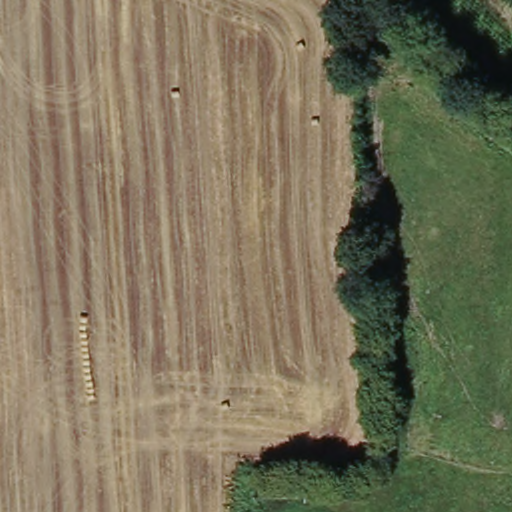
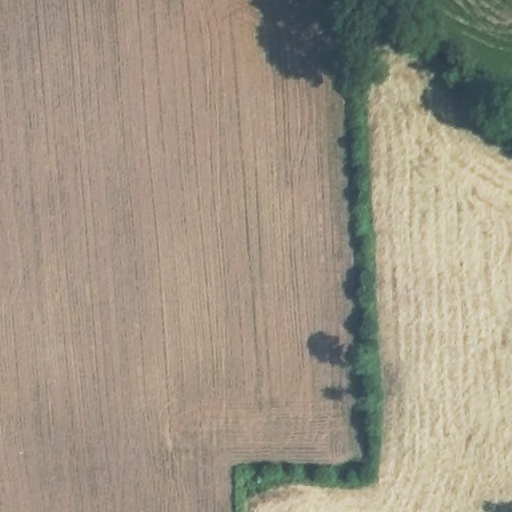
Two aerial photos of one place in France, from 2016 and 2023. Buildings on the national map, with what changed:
unchanged [(256,497),(254,480),(304,474),(304,494),(256,497)]

